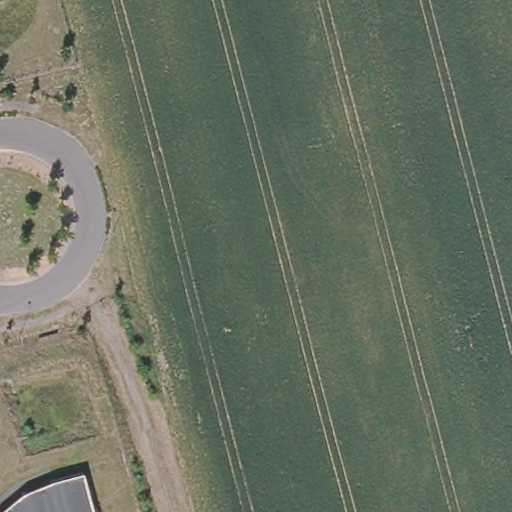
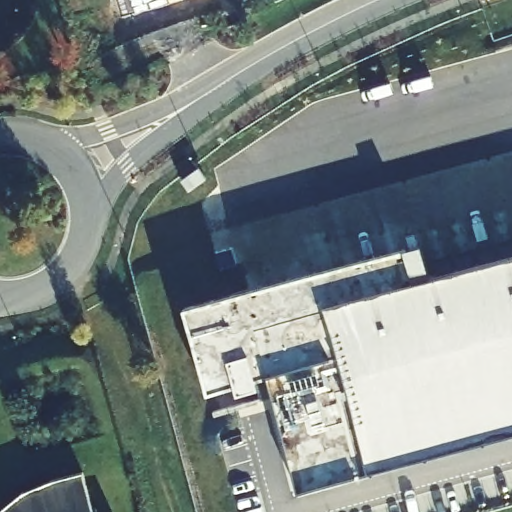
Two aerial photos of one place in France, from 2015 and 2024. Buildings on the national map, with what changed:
new [(169,0),(175,0),(169,1),(169,0)]
new [(444,279),(512,264),(512,447),(309,497),(281,393),(218,409),(187,305),(438,249),(444,279)]
unchanged [(20,492),(50,480),(80,472),(91,512),(0,512),(0,509),(20,492)]

